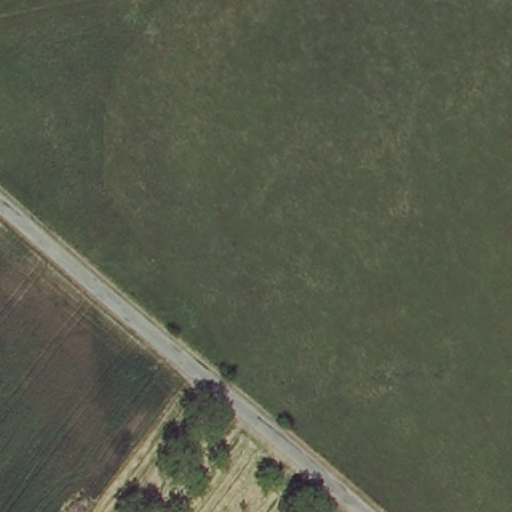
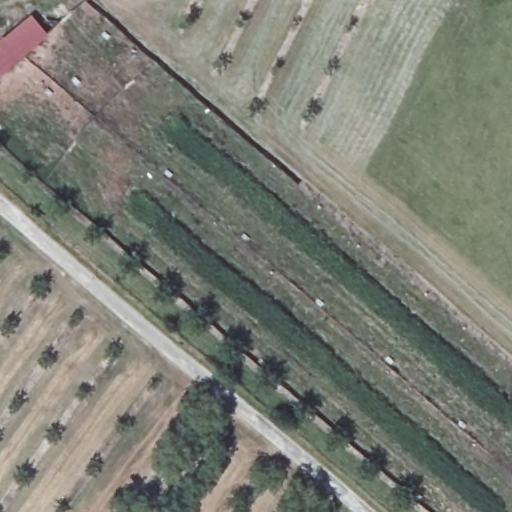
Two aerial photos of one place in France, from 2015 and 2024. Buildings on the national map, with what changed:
new [(49,35),(0,77),(0,42),(32,15),(49,35)]

